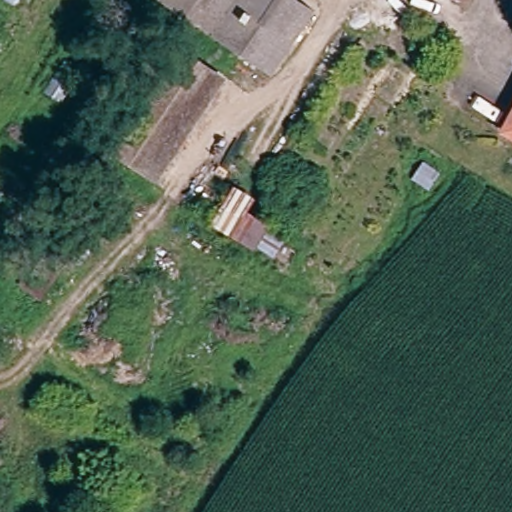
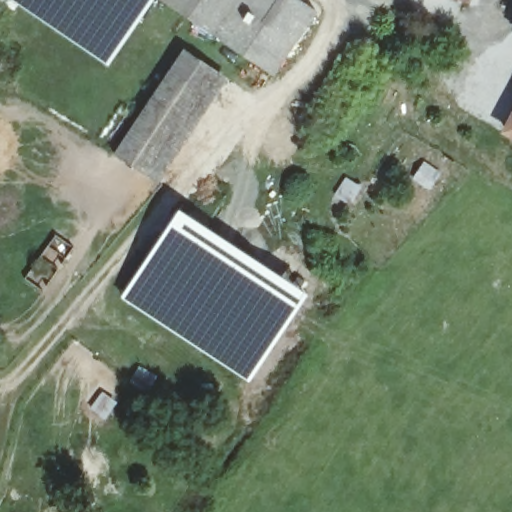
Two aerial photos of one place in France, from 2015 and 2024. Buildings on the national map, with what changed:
new [(108,67),(13,0),(153,0),(108,67)]
unchanged [(188,21),(161,2),(162,0),(202,0),(188,21)]
unchanged [(219,42),(217,41),(188,21),(202,0),(246,0),(219,42)]
unchanged [(317,17),(275,79),(219,42),(246,0),(291,0),(317,17)]
unchanged [(187,56),(217,78),(150,182),(117,159),(187,56)]
unchanged [(512,113),(512,129),(506,124),(512,113)]
unchanged [(214,228),(237,185),(257,199),(248,212),(269,225),(256,253),(214,228)]
new [(178,207),(307,292),(248,383),(118,297),(178,207)]
demolished [(74,253),(44,297),(26,283),(56,241),(74,253)]

